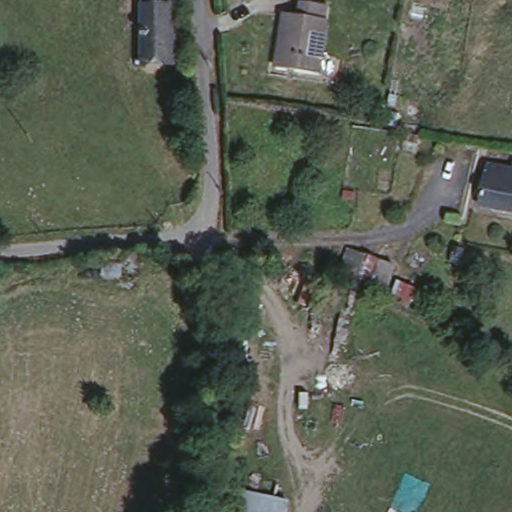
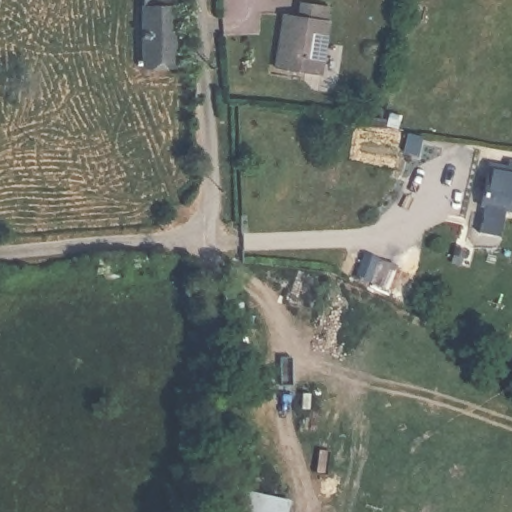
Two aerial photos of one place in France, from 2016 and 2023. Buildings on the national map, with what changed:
unchanged [(141,64),(139,0),(168,0),(172,64),(141,64)]
unchanged [(308,18),(310,3),(334,7),(324,71),(289,65),(295,16),(308,18)]
unchanged [(512,175),(512,210),(479,207),(484,172),(512,175)]
unchanged [(364,257),(362,275),(342,272),(344,253),(364,257)]
unchanged [(107,259),(149,260),(147,277),(105,275),(107,259)]
unchanged [(384,269),(384,276),(369,275),(368,268),(384,269)]
unchanged [(434,275),(433,281),(419,278),(419,273),(434,275)]
unchanged [(247,483),(295,494),(291,512),(240,512),(247,483)]

